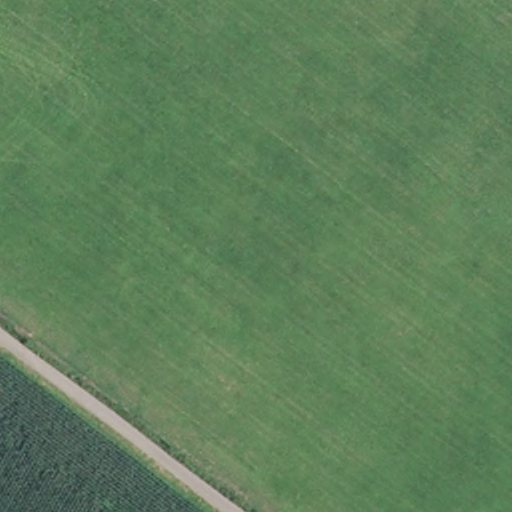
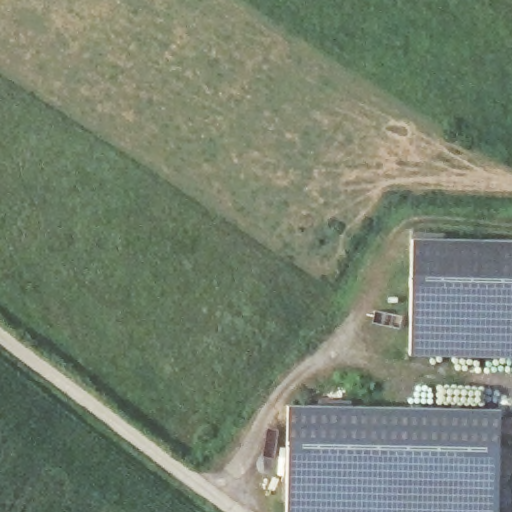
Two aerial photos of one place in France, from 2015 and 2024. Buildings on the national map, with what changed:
new [(512,238),(512,353),(411,351),(413,236),(512,238)]
new [(502,407),(500,512),(287,512),(290,402),(502,407)]

